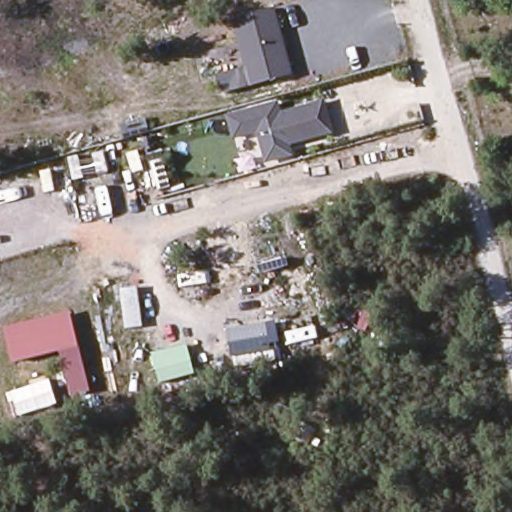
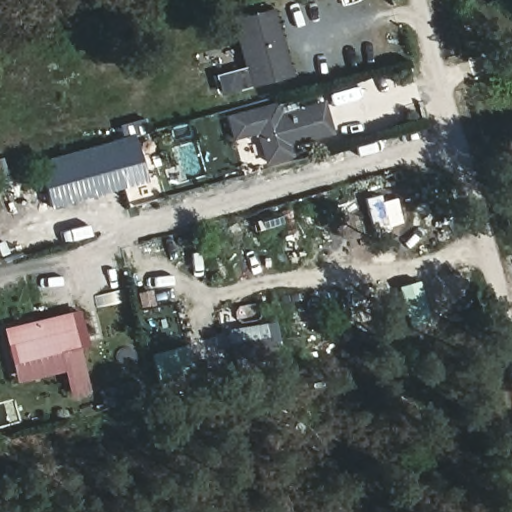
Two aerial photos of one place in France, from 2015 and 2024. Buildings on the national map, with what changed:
unchanged [(297,74),(250,88),(231,20),(276,7),(297,74)]
unchanged [(337,134),(292,146),(296,156),(267,165),(259,134),(232,141),(225,115),(278,101),(283,112),(327,100),(337,134)]
new [(37,161),(109,140),(111,146),(136,139),(141,160),(148,180),(51,207),(45,187),(37,161)]
unchanged [(93,392),(73,397),(61,353),(13,366),(4,327),(71,312),(93,392)]
unchanged [(282,360),(233,369),(226,328),(275,319),(282,360)]
unchanged [(200,377),(162,389),(151,345),(188,335),(200,377)]

